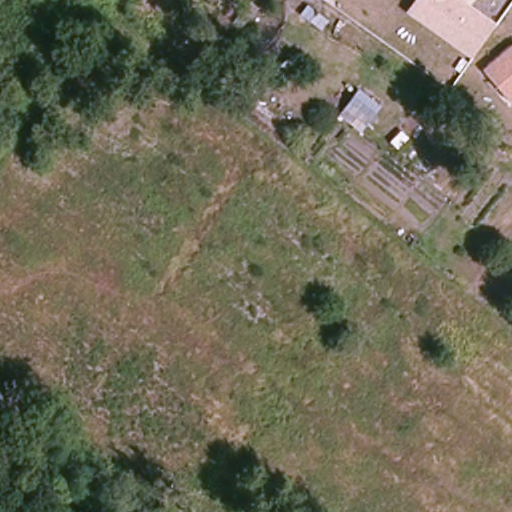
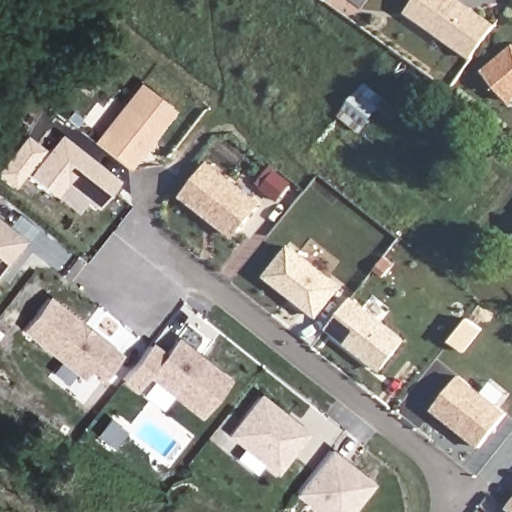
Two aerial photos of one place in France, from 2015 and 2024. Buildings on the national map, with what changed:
unchanged [(496,24),(470,58),(406,12),(415,0),(462,0),(496,24)]
unchanged [(510,102),(483,70),(512,45),(512,101),(510,102)]
new [(139,85),(173,111),(127,170),(93,144),(139,85)]
unchanged [(361,133),(338,116),(358,89),(382,107),(361,133)]
new [(117,182),(97,209),(65,186),(54,197),(28,177),(59,137),(117,182)]
new [(40,151),(12,186),(0,177),(0,169),(24,138),(40,151)]
new [(202,161),(262,214),(237,242),(178,190),(202,161)]
new [(0,269),(0,225),(21,242),(0,269)]
new [(299,251),(349,290),(325,318),(276,280),(299,251)]
new [(49,298),(121,357),(104,378),(93,369),(84,380),(23,331),(49,298)]
new [(352,299),(405,341),(382,371),(328,328),(352,299)]
new [(149,347),(163,357),(175,342),(226,382),(198,418),(145,377),(133,392),(121,382),(149,347)]
new [(461,378),(509,416),(482,450),(469,440),(467,434),(462,429),(460,432),(434,412),(461,378)]
new [(260,395),(308,432),(275,474),(227,436),(260,395)]
new [(103,416),(128,436),(116,452),(90,431),(103,416)]
new [(372,485),(350,512),(315,512),(296,497),(331,452),(372,485)]

